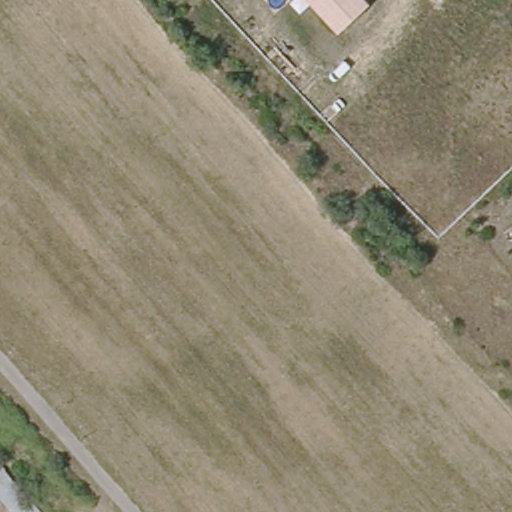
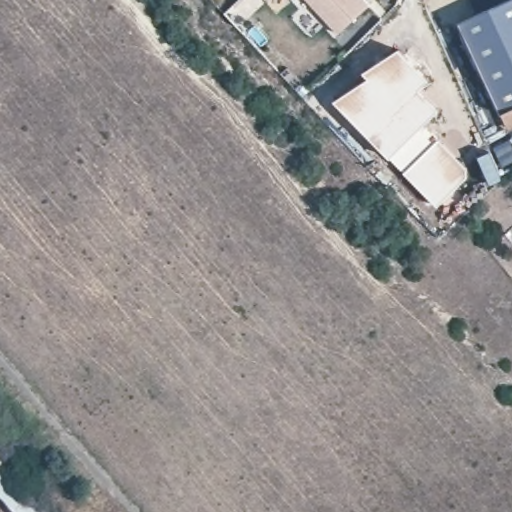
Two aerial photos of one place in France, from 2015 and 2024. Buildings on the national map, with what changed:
unchanged [(370,5),(339,33),(306,0),(364,0),(370,5)]
new [(512,108),(500,113),(457,21),(504,0),(512,0),(512,108)]
new [(367,77),(363,72),(401,47),(431,80),(422,89),(440,108),(426,124),(439,137),(465,165),(470,175),(436,206),(335,101),(367,77)]
new [(42,512),(12,512),(0,497),(0,461),(42,512)]

